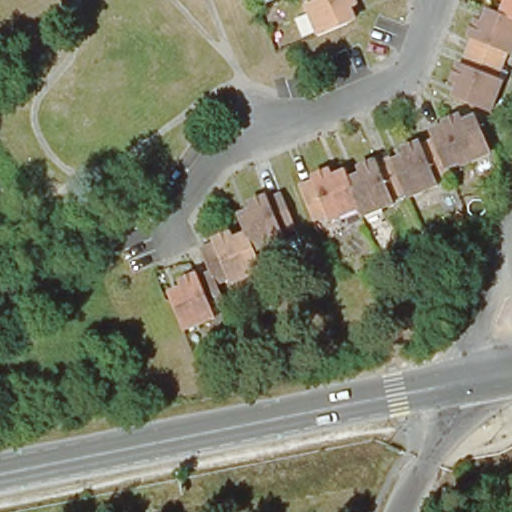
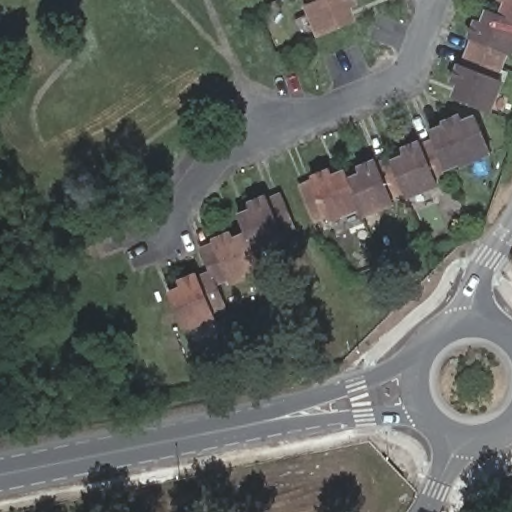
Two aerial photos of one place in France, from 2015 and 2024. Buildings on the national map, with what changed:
unchanged [(338,14),(333,15),(338,27),(309,40),(296,10),(302,7),(299,0),(342,0),(346,10),(338,14)]
unchanged [(492,0),(512,0),(512,38),(504,60),(496,57),(492,70),(487,84),(493,85),(481,115),(453,104),(458,92),(452,90),(443,86),(450,69),(453,70),(459,56),(463,44),(460,42),(467,25),(475,27),(479,30),(484,16),(493,19),(498,6),(490,3),(492,0)]
unchanged [(343,177),(361,170),(363,172),(377,167),(379,172),(390,167),(387,159),(406,151),(407,155),(420,149),(416,140),(429,134),(428,132),(446,125),(449,132),(452,137),(464,132),(477,161),(445,174),(442,169),(430,174),(434,181),(420,187),(423,194),(393,206),(390,200),(376,205),(379,212),(348,225),(345,217),(314,230),(312,223),(300,229),(286,195),(298,189),(297,186),(314,180),(317,187),(319,192),(332,186),(334,189),(346,184),(343,177)]
unchanged [(244,222),(241,216),(238,209),(257,201),(258,204),(271,197),(286,232),(272,237),(274,242),(244,255),(251,273),(220,286),(217,281),(205,286),(215,310),(203,315),(205,320),(174,333),(161,305),(173,299),(171,295),(168,287),(187,279),(188,281),(200,276),(191,254),(204,248),(203,245),(221,237),(224,245),(237,240),(232,227),(244,222)]
unchanged [(455,253),(467,256),(463,268),(452,266),(455,253)]

